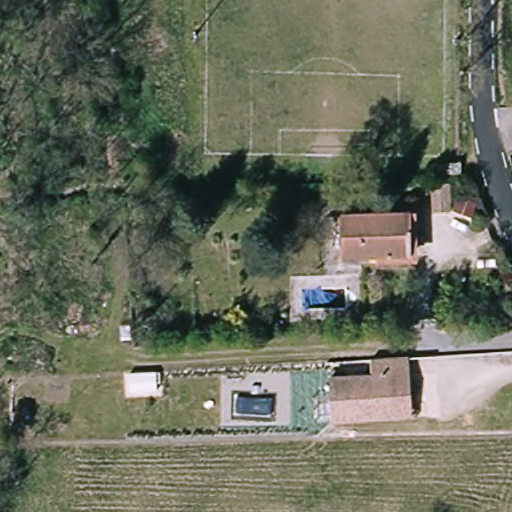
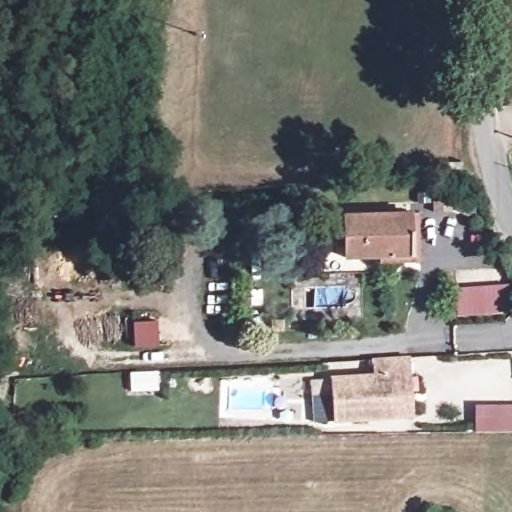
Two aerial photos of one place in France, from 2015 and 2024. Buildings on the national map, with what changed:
unchanged [(405,209),(407,261),(375,265),(374,255),(345,257),(343,215),(405,209)]
new [(512,313),(457,317),(455,289),(509,286),(512,313)]
unchanged [(396,421),(335,427),(332,383),(375,378),(373,357),(410,353),(410,372),(413,420),(396,421)]
new [(158,370),(160,390),(130,392),(129,372),(158,370)]
new [(512,432),(475,432),(474,405),(512,404),(512,432)]

